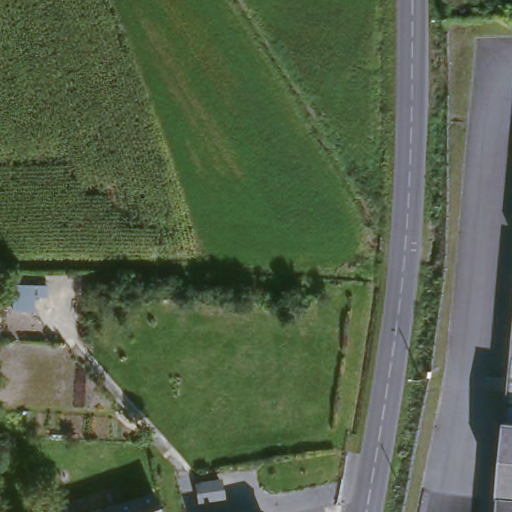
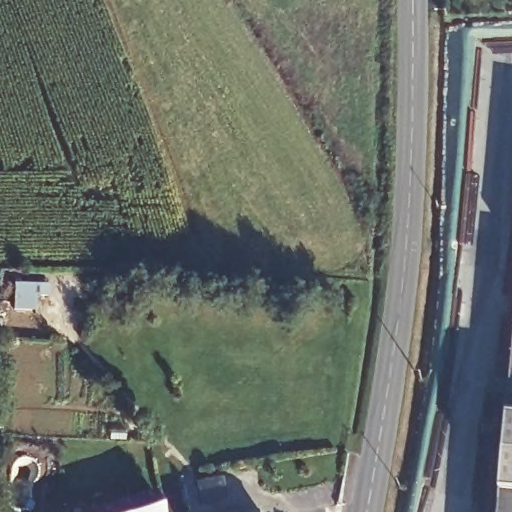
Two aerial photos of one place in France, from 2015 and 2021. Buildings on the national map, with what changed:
unchanged [(496,512),(498,492),(503,425),(512,337),(512,512),(496,512)]
unchanged [(91,512),(150,495),(157,512),(91,512)]

